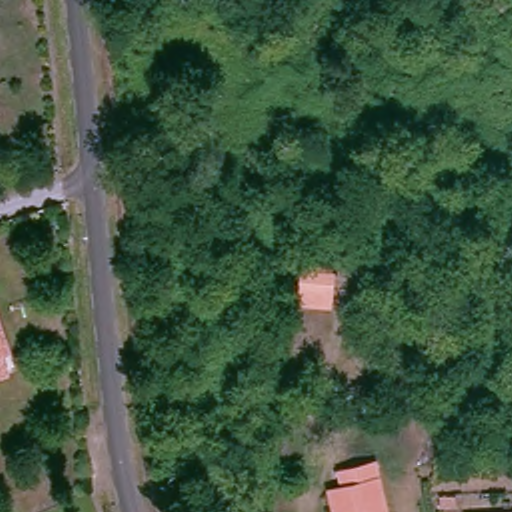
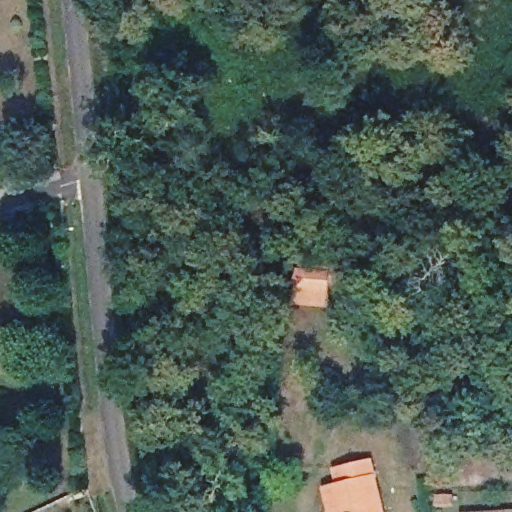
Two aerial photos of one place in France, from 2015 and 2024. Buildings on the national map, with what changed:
unchanged [(290,307),(295,255),(334,260),(330,311),(290,307)]
unchanged [(339,478),(335,463),(369,455),(383,512),(333,512),(325,482),(339,478)]

